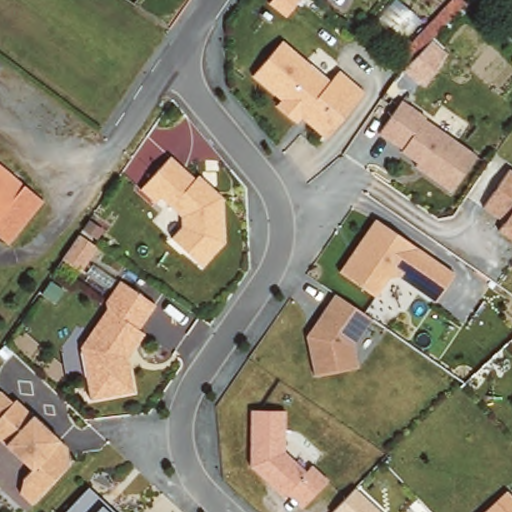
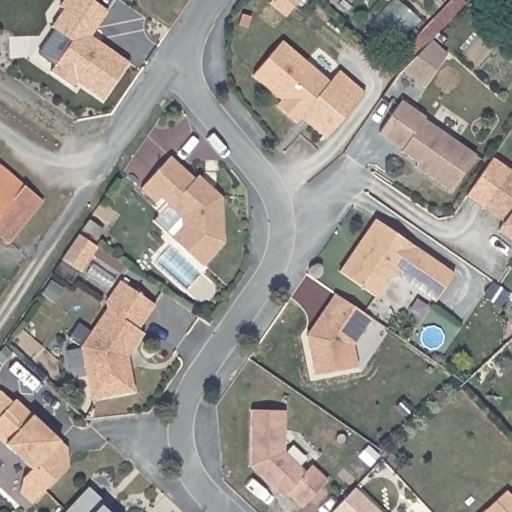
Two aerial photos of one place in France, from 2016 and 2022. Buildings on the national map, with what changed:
new [(109,10),(92,36),(130,61),(103,99),(77,82),(74,86),(51,70),(72,39),(51,26),(64,7),(60,5),(63,0),(94,0),(109,10)]
new [(285,11),(271,0),(294,0),(285,11)]
unchanged [(332,81),(340,72),(364,94),(324,139),(300,120),(296,124),(275,107),(279,101),(252,79),(283,42),(332,81)]
new [(420,44),(438,55),(418,89),(395,75),(420,44)]
unchanged [(476,155),(451,192),(415,167),(417,163),(401,154),(403,149),(379,134),(402,102),(476,155)]
unchanged [(159,200),(156,205),(141,192),(169,159),(195,180),(197,178),(221,199),(221,246),(200,264),(171,238),(180,228),(180,218),(159,200)]
unchanged [(42,205),(10,243),(0,235),(0,170),(42,205)]
unchanged [(512,241),(500,232),(503,225),(481,210),(507,172),(512,175),(512,241)]
unchanged [(455,275),(436,303),(400,279),(388,281),(375,298),(338,273),(373,220),(455,275)]
new [(72,239),(90,251),(72,276),(55,263),(72,239)]
unchanged [(106,310),(102,307),(120,284),(155,306),(137,332),(140,335),(126,361),(134,393),(90,399),(79,352),(106,310)]
unchanged [(371,319),(372,321),(353,350),(358,368),(313,376),(306,337),(335,295),(371,319)]
new [(512,351),(503,342),(505,340),(512,334),(512,351)]
unchanged [(32,470),(8,448),(0,442),(0,394),(12,404),(16,400),(33,416),(59,441),(67,449),(69,466),(34,503),(20,493),(21,481),(32,470)]
unchanged [(283,453),(306,473),(311,468),(328,481),(301,508),(288,496),(285,500),(251,468),(251,412),(285,414),(283,453)]
unchanged [(89,488),(101,506),(108,512),(67,512),(88,490),(89,488)]
unchanged [(332,512),(353,490),(377,512),(332,512)]
unchanged [(512,498),(512,512),(484,512),(494,503),(507,493),(512,498)]

